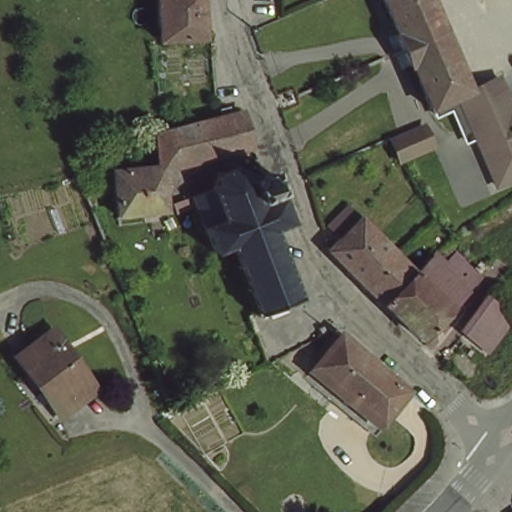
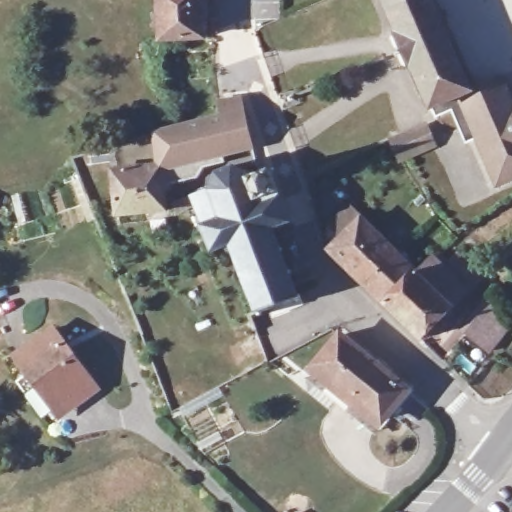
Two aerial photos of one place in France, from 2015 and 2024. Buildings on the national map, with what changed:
unchanged [(203,35),(159,38),(158,0),(202,0),(203,35)]
unchanged [(433,101),(429,103),(383,0),(435,0),(473,83),(474,84),(433,101)]
unchanged [(456,108),(454,105),(451,104),(437,109),(433,101),(474,84),(473,83),(499,72),(506,87),(512,104),(512,172),(494,179),(475,133),(467,136),(462,123),(456,108)]
unchanged [(231,114),(243,113),(247,145),(165,165),(166,210),(113,214),(113,168),(157,164),(157,133),(159,133),(216,119),(216,109),(229,107),(231,114)]
unchanged [(434,143),(402,156),(391,135),(427,120),(434,143)]
unchanged [(250,172),(269,164),(290,214),(273,221),(299,295),(259,309),(231,238),(213,246),(193,194),(213,186),(216,168),(238,161),(250,172)]
unchanged [(334,258),(331,250),(363,217),(400,249),(366,287),(334,258)]
unchanged [(421,266),(387,306),(366,287),(400,249),(421,266)]
unchanged [(421,266),(429,255),(442,265),(457,250),(484,273),(424,339),(387,306),(421,266)]
unchanged [(512,322),(492,350),(469,330),(494,297),(512,312),(512,322)]
unchanged [(34,381),(14,354),(50,328),(93,383),(65,404),(56,411),(34,381)]
unchanged [(340,405),(306,375),(340,338),(409,389),(383,420),(371,433),(340,405)]

